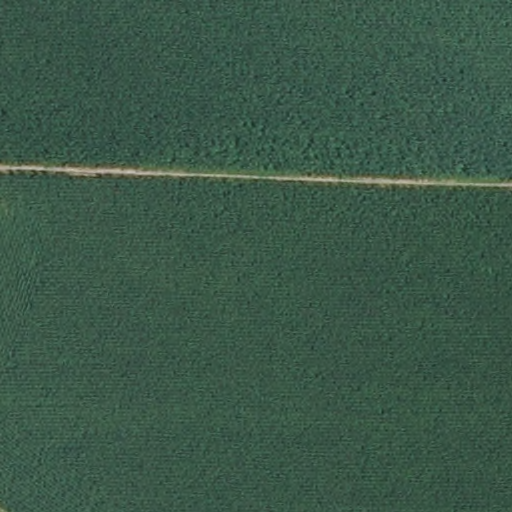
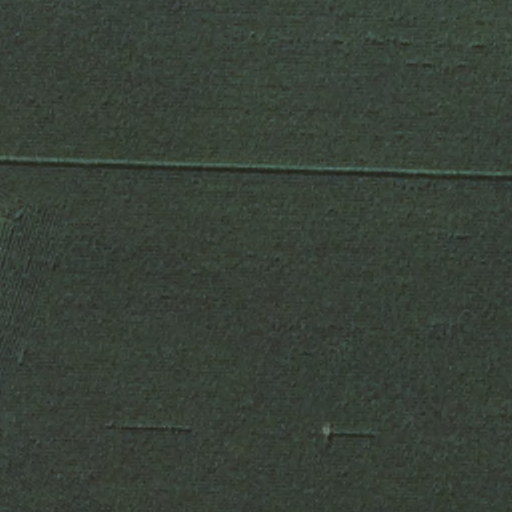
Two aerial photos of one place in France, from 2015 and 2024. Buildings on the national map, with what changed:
[]

